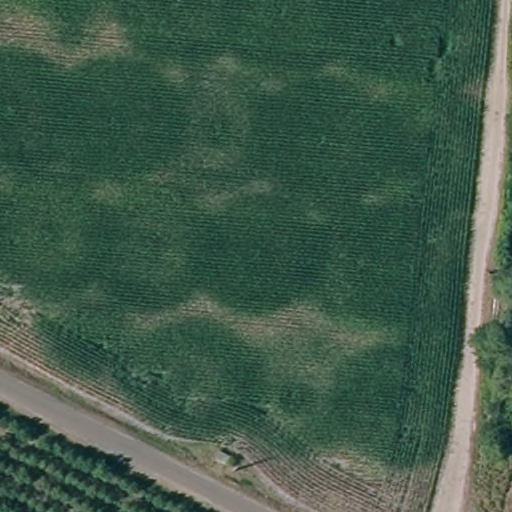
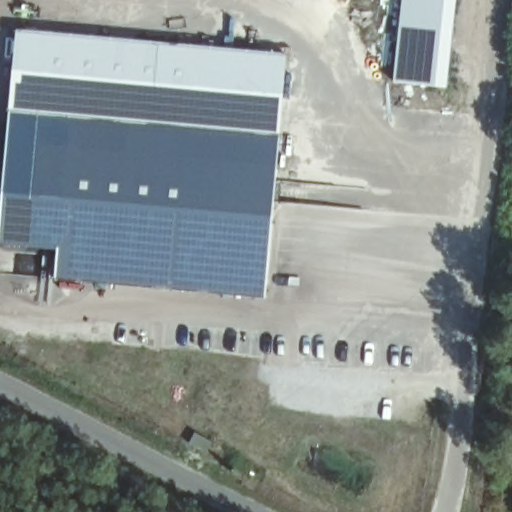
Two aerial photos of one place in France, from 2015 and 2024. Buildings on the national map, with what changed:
new [(447,90),(392,83),(401,0),(457,0),(447,90)]
new [(0,243),(0,236),(16,30),(286,54),(265,297),(55,278),(58,249),(0,243)]
unchanged [(262,424),(258,430),(249,425),(252,418),(262,424)]
demolished [(222,449),(220,455),(210,450),(212,443),(222,449)]

